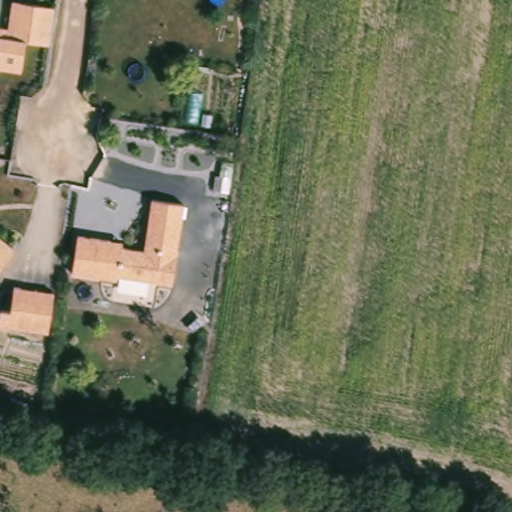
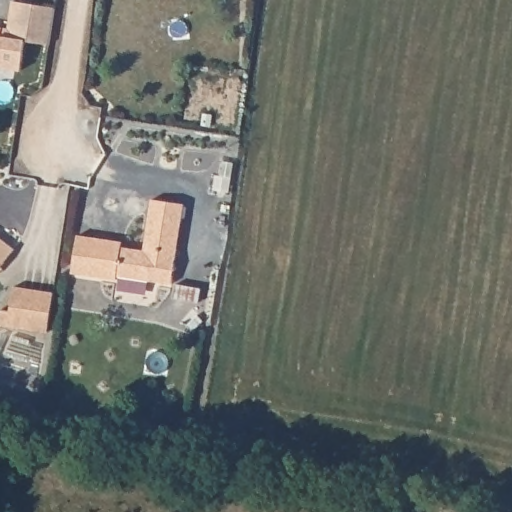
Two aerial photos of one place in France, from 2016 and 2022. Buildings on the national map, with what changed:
unchanged [(8,26),(11,1),(55,9),(49,47),(25,44),(20,73),(0,70),(0,25),(8,26)]
unchanged [(1,18),(0,25),(0,18),(1,18)]
unchanged [(151,211),(183,216),(173,281),(118,272),(118,276),(73,270),(79,231),(112,237),(123,239),(123,244),(145,247),(151,211)]
unchanged [(13,247),(1,263),(0,265),(0,237),(13,247)]
unchanged [(52,293),(48,333),(0,326),(0,309),(10,311),(12,288),(12,290),(52,293)]

